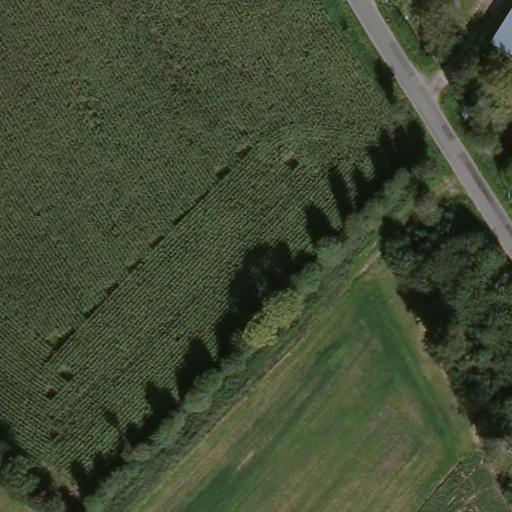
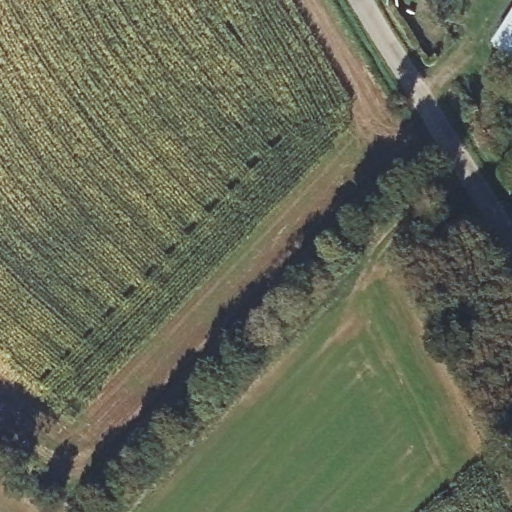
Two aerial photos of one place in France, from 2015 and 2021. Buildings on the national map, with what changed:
unchanged [(493,45),(512,14),(512,57),(493,45)]

